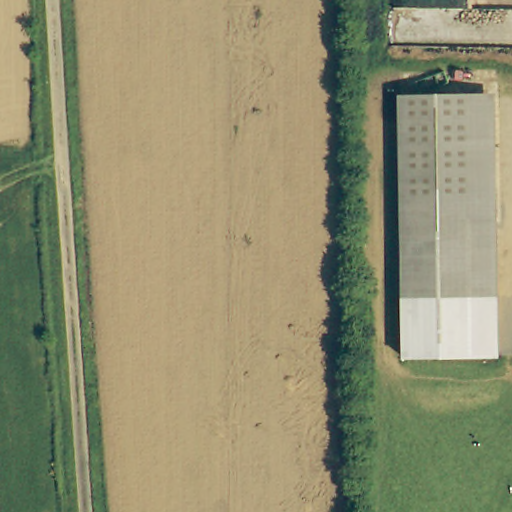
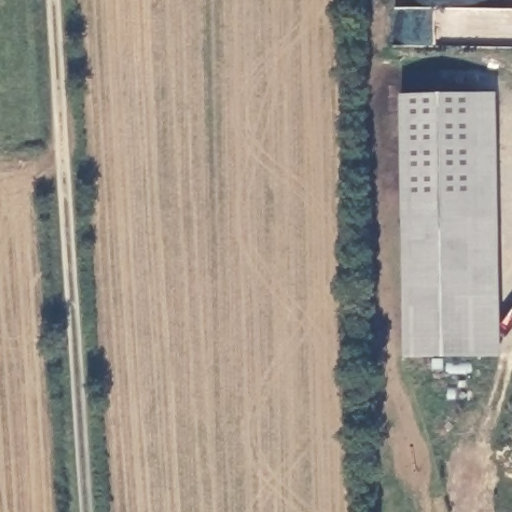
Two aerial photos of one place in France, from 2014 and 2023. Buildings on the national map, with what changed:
unchanged [(488,91),(497,292),(407,296),(397,95),(488,91)]
unchanged [(497,292),(500,359),(411,361),(407,296),(497,292)]

